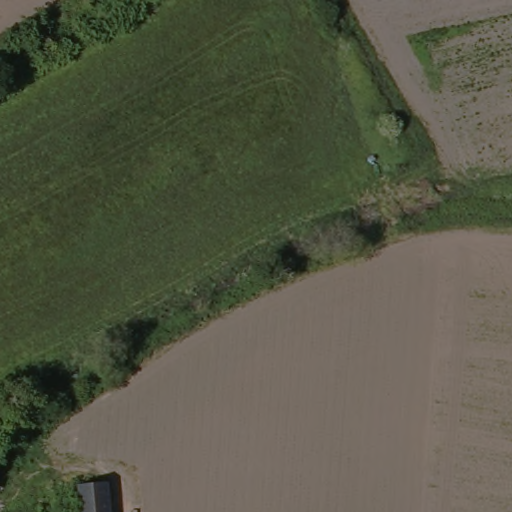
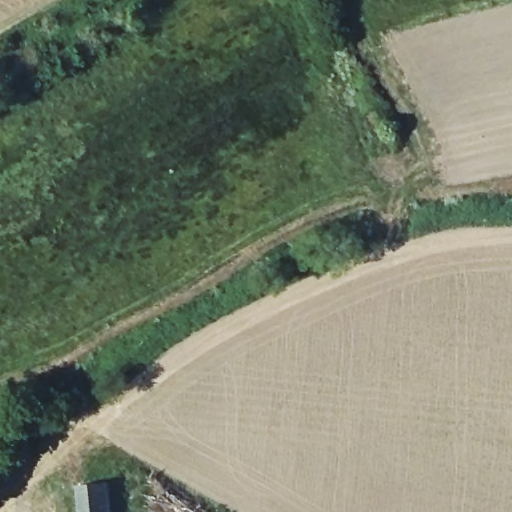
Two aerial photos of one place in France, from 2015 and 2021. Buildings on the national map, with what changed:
unchanged [(87,512),(84,481),(115,478),(116,512),(87,512)]

